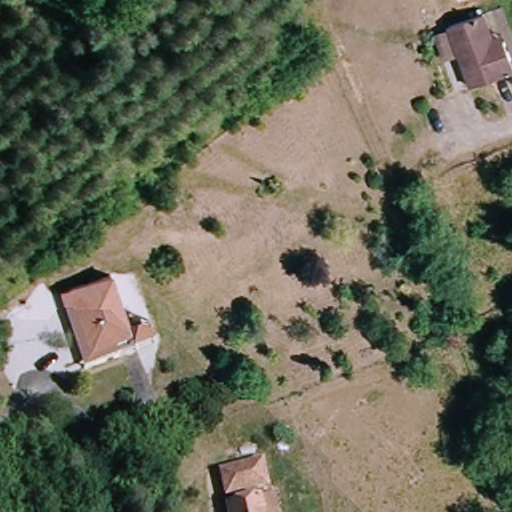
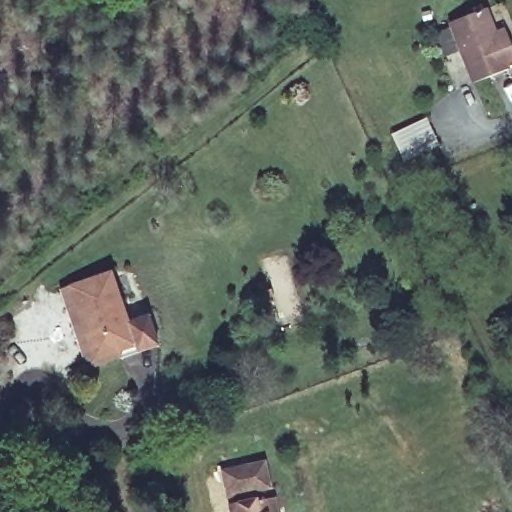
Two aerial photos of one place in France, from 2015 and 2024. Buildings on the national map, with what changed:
unchanged [(492,5),(506,36),(512,34),(512,69),(484,82),(457,20),(492,5)]
unchanged [(127,352),(86,368),(84,361),(56,288),(96,272),(118,329),(137,322),(145,345),(127,352)]
unchanged [(232,512),(232,508),(245,505),(243,495),(229,497),(224,473),(265,465),(270,489),(255,492),(258,503),(263,502),(265,512),(232,512)]

